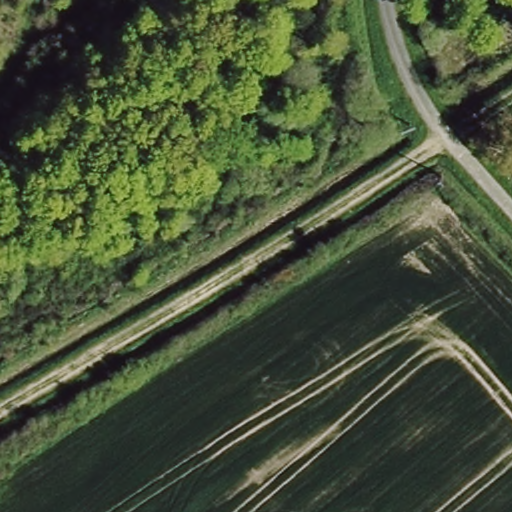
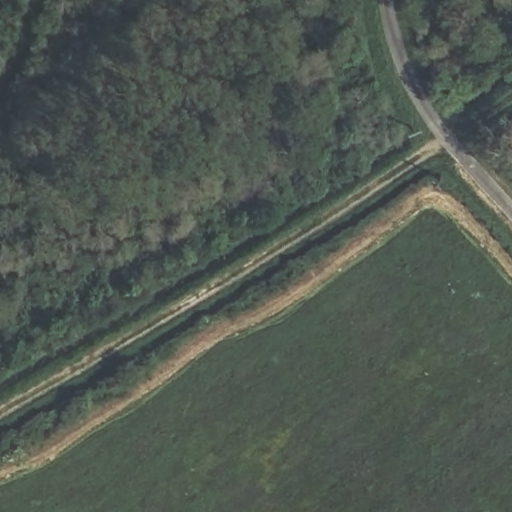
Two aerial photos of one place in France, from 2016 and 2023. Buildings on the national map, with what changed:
[]

